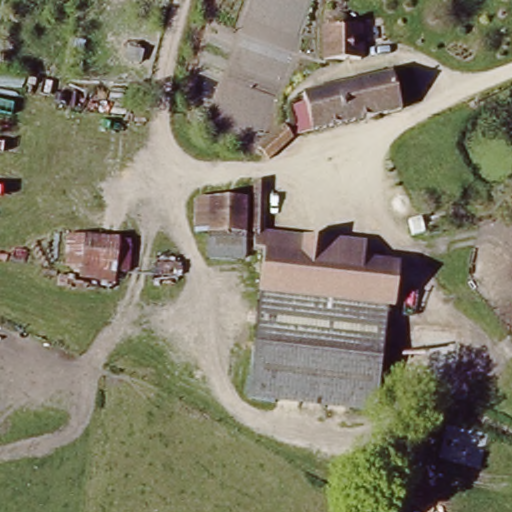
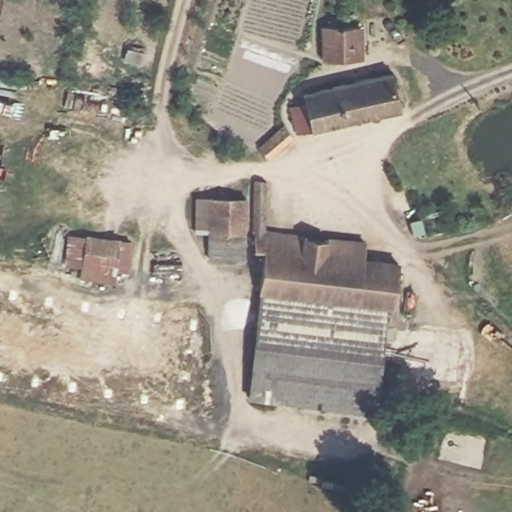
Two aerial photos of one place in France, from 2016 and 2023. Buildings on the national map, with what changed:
unchanged [(359,23),(363,55),(331,59),(327,27),(359,23)]
unchanged [(310,127),(302,94),(398,71),(412,101),(310,127)]
unchanged [(285,130),(292,139),(271,160),(264,151),(285,130)]
unchanged [(257,297),(265,245),(264,235),(252,234),(253,180),(265,181),(267,230),(367,241),(367,262),(400,266),(393,314),(257,297)]
unchanged [(207,262),(207,232),(192,231),(193,198),(246,199),(245,258),(207,262)]
unchanged [(122,269),(101,267),(80,264),(84,238),(105,242),(125,246),(122,269)]
unchanged [(153,281),(155,270),(177,274),(175,284),(153,281)]
unchanged [(393,314),(373,413),(243,398),(257,297),(393,314)]

